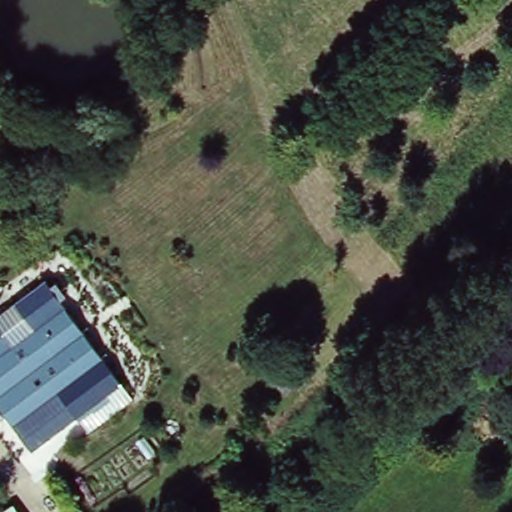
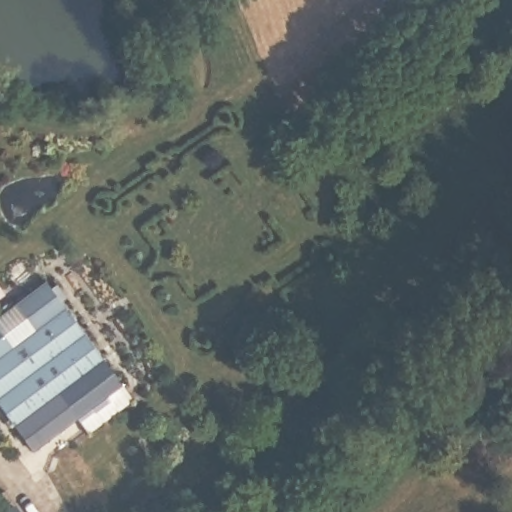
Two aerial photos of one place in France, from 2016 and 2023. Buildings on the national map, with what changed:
unchanged [(127,391),(38,456),(0,406),(0,299),(39,270),(127,391)]

